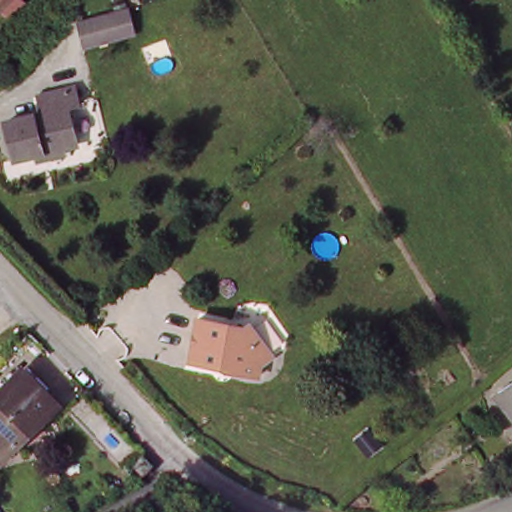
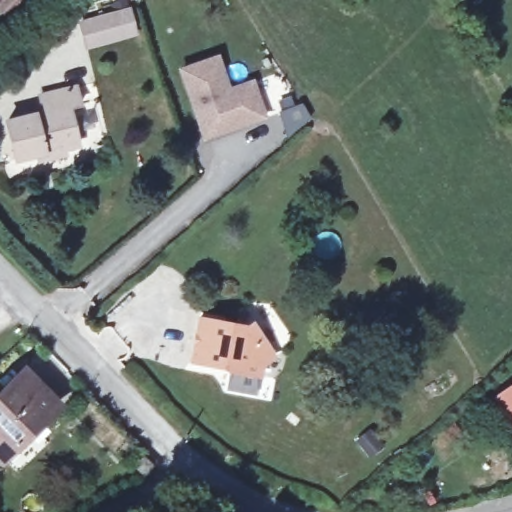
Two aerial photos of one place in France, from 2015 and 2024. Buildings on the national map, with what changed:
unchanged [(119,11),(131,8),(137,32),(125,35),(116,37),(89,44),(83,20),(102,15),(119,11)]
new [(218,54),(228,85),(253,78),(266,118),(202,140),(176,67),(218,54)]
unchanged [(34,155),(33,149),(12,154),(3,117),(40,108),(36,91),(73,82),(78,102),(68,104),(75,139),(62,142),(63,148),(34,155)]
unchanged [(228,320),(226,325),(237,327),(247,320),(271,353),(258,361),(256,375),(224,369),(221,365),(186,358),(196,315),(228,320)]
unchanged [(51,407),(1,457),(0,457),(0,396),(21,376),(51,407)]
unchanged [(512,383),(512,410),(499,393),(512,383)]
unchanged [(135,462),(139,458),(144,453),(153,462),(148,467),(143,472),(135,462)]
unchanged [(69,511),(69,512),(51,512),(63,503),(69,511)]

